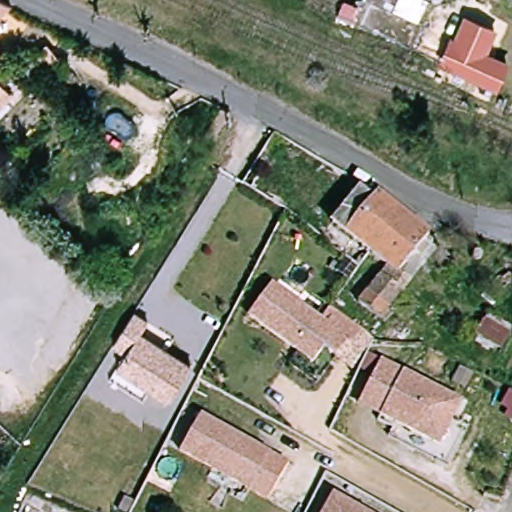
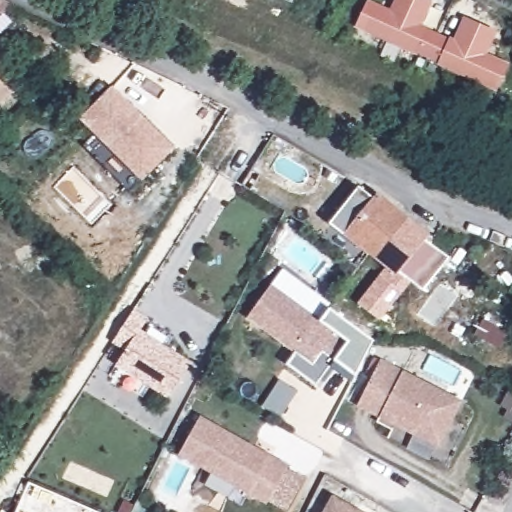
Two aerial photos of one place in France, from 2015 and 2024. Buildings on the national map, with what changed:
unchanged [(0,16),(0,0),(6,0),(12,3),(0,16)]
new [(372,0),(391,9),(395,0),(429,0),(432,2),(422,24),(450,36),(438,65),(354,27),(367,0),(372,0)]
unchanged [(497,32),(488,54),(509,62),(496,92),(438,65),(450,36),(455,37),(463,17),(497,32)]
unchanged [(16,49),(28,38),(43,61),(32,69),(16,49)]
unchanged [(5,59),(0,65),(0,54),(5,59)]
new [(175,148),(142,180),(80,119),(113,86),(175,148)]
unchanged [(405,278),(397,272),(368,247),(340,225),(364,193),(381,205),(387,199),(396,207),(435,240),(407,275),(405,278)]
demolished [(3,254),(9,247),(70,303),(27,348),(0,324),(0,251),(3,254)]
unchanged [(325,278),(330,270),(344,281),(339,288),(325,278)]
unchanged [(419,289),(409,302),(388,327),(368,312),(375,302),(364,293),(374,281),(384,288),(397,272),(405,278),(407,275),(419,289)]
unchanged [(349,320),(361,328),(351,343),(347,340),(336,356),(323,347),(315,360),(313,363),(272,335),(246,317),(268,284),(325,323),(334,310),(349,320)]
unchanged [(117,346),(137,315),(152,323),(144,335),(172,352),(196,367),(173,404),(120,371),(130,355),(117,346)]
unchanged [(381,361),(404,372),(387,406),(381,418),(358,406),(365,393),(381,361)]
unchanged [(463,403),(445,439),(440,448),(381,418),(387,406),(404,372),(463,403)]
unchanged [(211,488),(219,476),(186,457),(208,420),(296,471),(274,507),(256,497),(249,510),(211,488)]
unchanged [(336,497),(362,512),(328,512),(336,497)]

